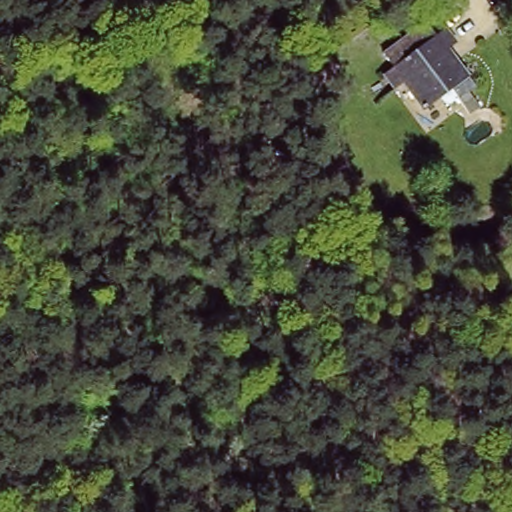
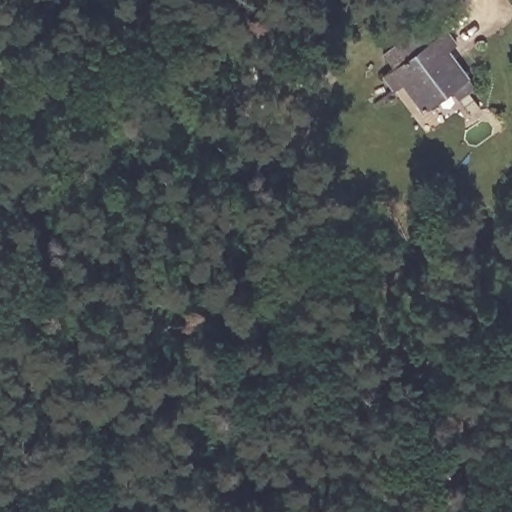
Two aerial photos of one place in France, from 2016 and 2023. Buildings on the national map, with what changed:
unchanged [(438,35),(447,29),(457,43),(448,50),(468,77),(428,109),(406,80),(398,86),(386,71),(394,65),(385,53),(427,21),(438,35)]
unchanged [(342,70),(315,90),(306,76),(332,56),(342,70)]

